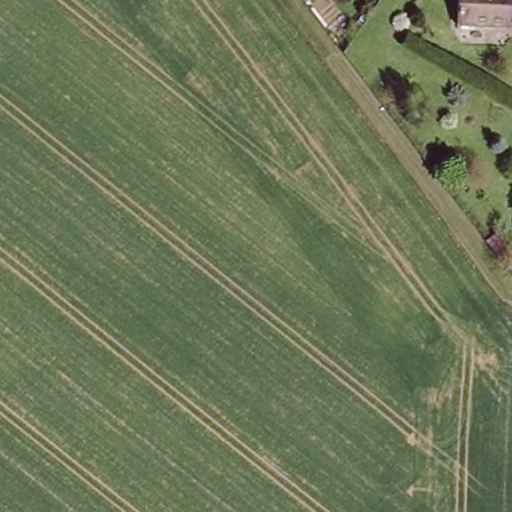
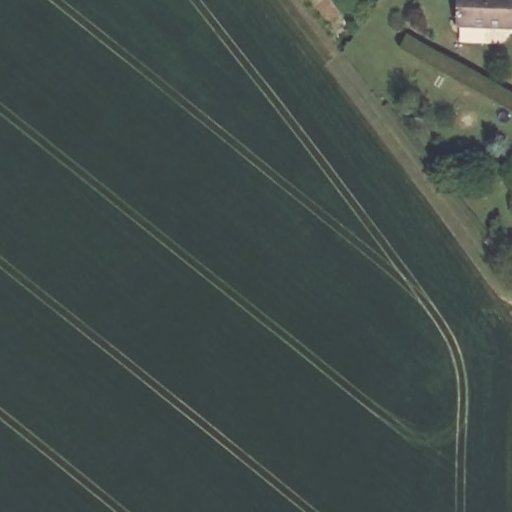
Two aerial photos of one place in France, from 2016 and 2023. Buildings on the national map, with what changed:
unchanged [(480,20),(468,20),(461,20),(462,0),(512,0),(512,19),(480,20)]

